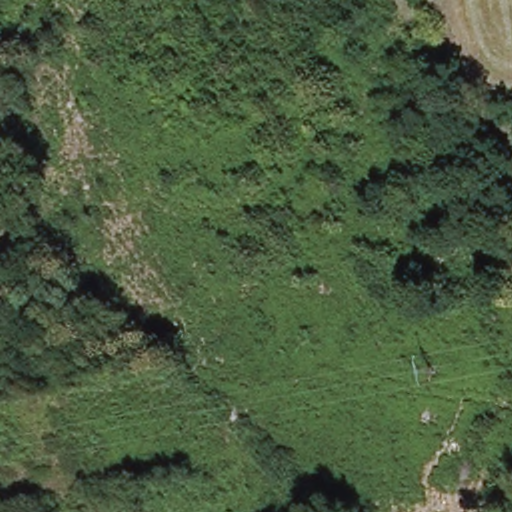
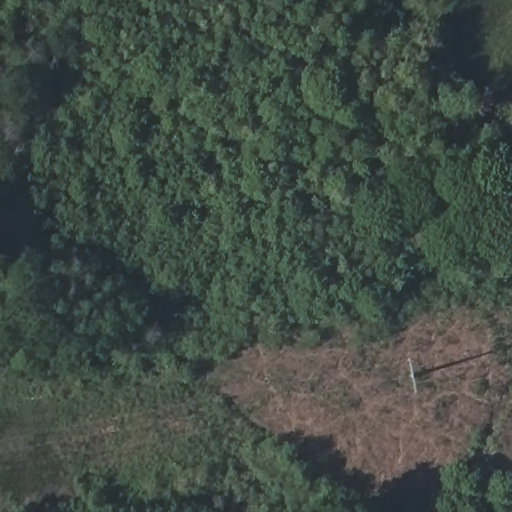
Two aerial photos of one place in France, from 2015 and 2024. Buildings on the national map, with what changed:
unchanged [(57,6),(52,5),(53,0),(59,0),(57,6)]

